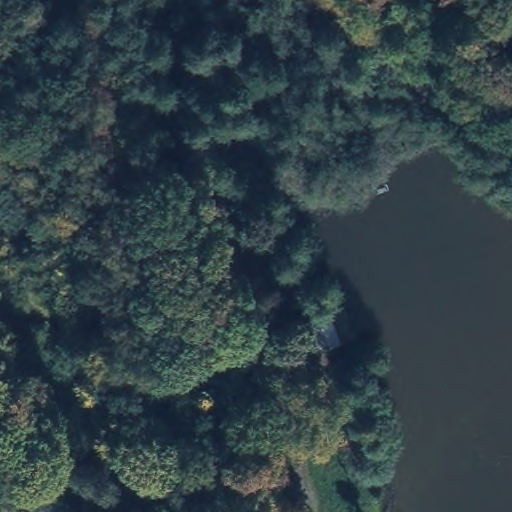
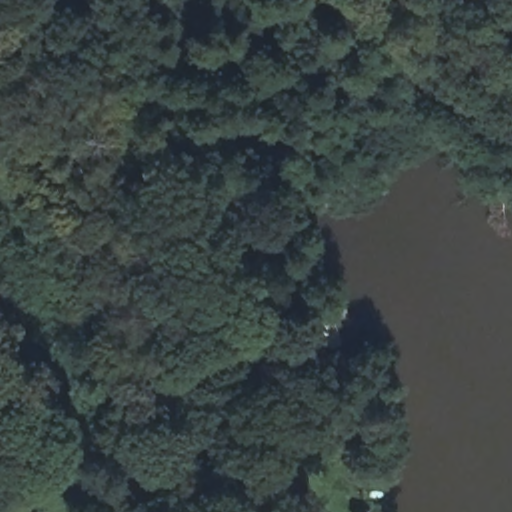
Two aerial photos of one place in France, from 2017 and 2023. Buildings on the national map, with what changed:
unchanged [(348,338),(307,353),(301,321),(342,306),(348,338)]

